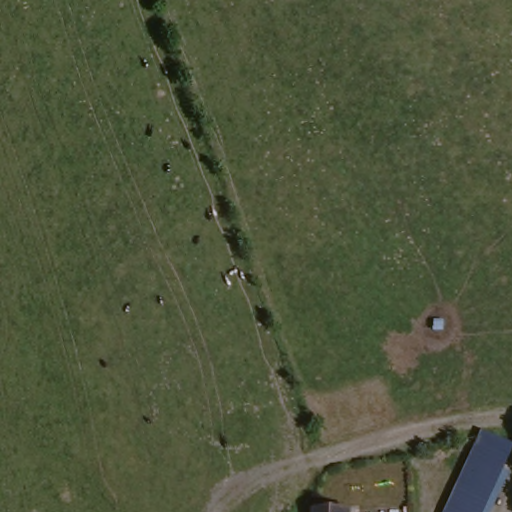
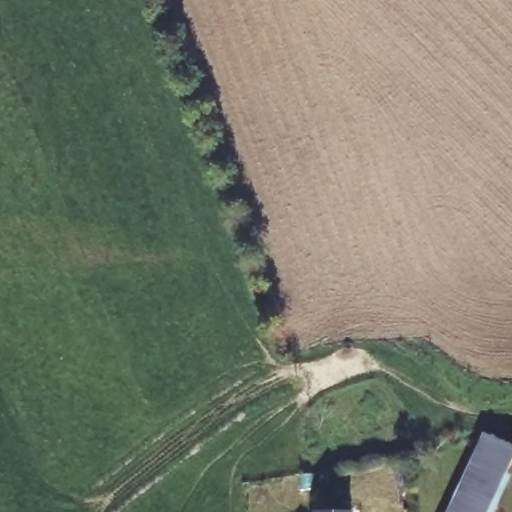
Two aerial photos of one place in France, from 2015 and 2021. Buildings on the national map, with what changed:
unchanged [(512,460),(512,464),(485,512),(451,512),(487,446),(512,460)]

